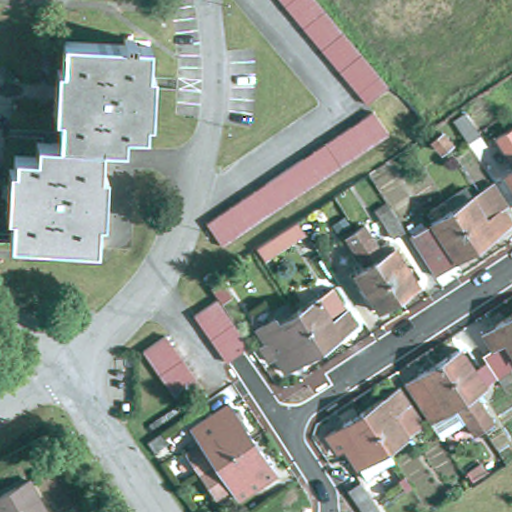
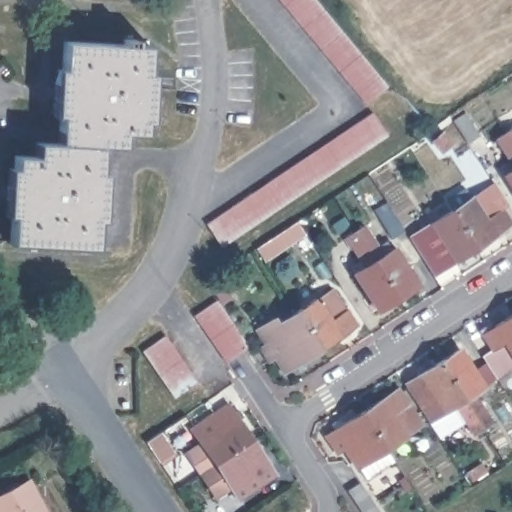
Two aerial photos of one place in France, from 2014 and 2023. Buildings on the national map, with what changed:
unchanged [(388,88),(372,101),(367,104),(288,0),(321,0),(388,88)]
unchanged [(9,242),(12,204),(13,193),(15,183),(5,182),(7,167),(16,167),(19,138),(37,138),(39,125),(62,126),(63,94),(53,93),(55,79),(65,80),(67,38),(128,42),(129,38),(140,39),(140,43),(152,43),(146,132),(124,130),(122,146),(104,145),(105,151),(97,247),(9,242)]
unchanged [(450,117),(461,110),(475,133),(464,140),(450,117)]
unchanged [(385,135),(222,245),(208,224),(205,220),(231,204),(365,114),(370,111),(371,113),(385,135)]
unchanged [(443,145),(431,153),(422,141),(434,132),(443,145)]
unchanged [(512,153),(512,165),(507,157),(512,153)]
unchanged [(510,225),(475,248),(450,210),(494,181),(508,203),(499,209),(510,225)]
unchanged [(376,217),(387,210),(402,233),(390,238),(376,217)]
unchanged [(475,248),(431,277),(406,239),(450,210),(475,248)]
unchanged [(420,283),(400,297),(356,231),(366,225),(385,252),(395,246),(420,283)]
unchanged [(400,297),(380,309),(355,271),(366,265),(347,237),(356,231),(400,297)]
unchanged [(357,325),(322,348),(297,310),(332,287),(357,325)]
unchanged [(197,316),(217,300),(252,346),(232,362),(197,316)]
unchanged [(288,371),(277,355),(271,359),(260,343),(266,338),(257,323),(272,312),(279,322),(297,310),(322,348),(288,371)]
unchanged [(487,354),(496,347),(484,327),(495,320),(497,324),(512,314),(512,387),(510,388),(487,354)]
unchanged [(187,393),(177,402),(142,357),(165,340),(199,384),(187,393)]
unchanged [(471,395),(490,423),(482,429),(437,364),(457,351),(482,387),(471,395)]
unchanged [(472,436),(452,407),(425,426),(400,389),(437,364),(482,429),(472,436)]
unchanged [(402,440),(383,452),(358,415),(393,392),(405,409),(417,429),(402,440)]
unchanged [(187,452),(203,442),(193,426),(230,400),(254,435),(200,472),(187,452)]
unchanged [(350,443),(334,453),(324,438),(358,415),(383,452),(390,463),(371,475),(350,443)]
unchanged [(230,481),(214,492),(200,472),(254,435),(279,471),(262,482),(240,496),(230,481)]
unchanged [(30,476),(54,512),(0,512),(0,496),(30,476)]
unchanged [(373,502),(359,511),(344,488),(357,479),(373,502)]

